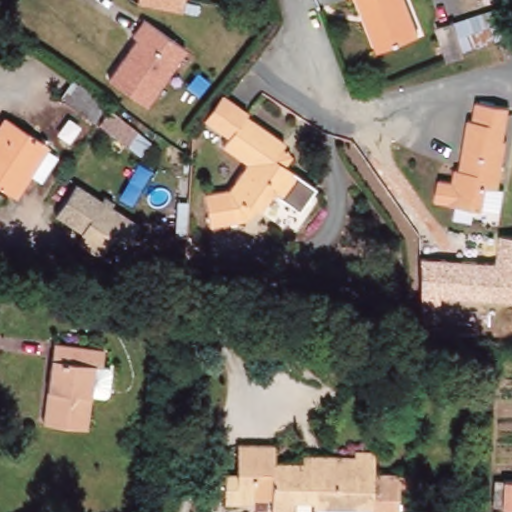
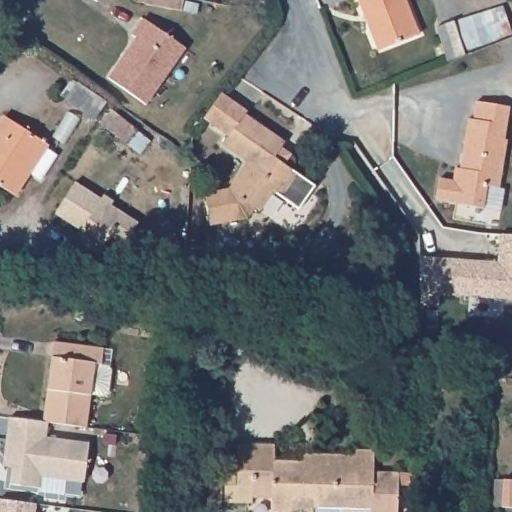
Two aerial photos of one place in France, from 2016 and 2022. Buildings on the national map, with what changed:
unchanged [(182,14),(139,5),(140,0),(185,0),(182,14)]
unchanged [(414,35),(374,50),(354,0),(401,0),(414,35)]
unchanged [(492,11),(497,25),(502,39),(466,51),(468,55),(450,62),(439,29),(457,23),(492,11)]
unchanged [(138,36),(133,33),(144,17),(186,47),(147,104),(110,77),(138,36)]
unchanged [(254,208),(253,209),(246,220),(208,224),(205,193),(226,191),(247,163),(222,145),(228,137),(203,119),(220,96),(221,95),(246,113),(244,116),(284,145),(274,159),(295,175),(314,189),(296,212),(283,203),(273,220),(258,211),(254,208)]
unchanged [(463,120),(468,120),(470,102),(504,107),(499,140),(502,140),(495,188),(482,186),(478,209),(446,205),(446,203),(431,200),(434,180),(447,182),(449,170),(455,171),(458,155),(463,120)]
unchanged [(47,147),(59,155),(44,178),(43,177),(31,170),(26,180),(16,194),(0,184),(0,124),(5,116),(48,146),(47,147)]
unchanged [(141,227),(114,267),(74,244),(81,234),(53,218),(75,183),(141,227)]
unchanged [(419,258),(497,262),(499,234),(512,235),(512,300),(439,295),(439,307),(417,306),(419,258)]
unchanged [(98,348),(96,364),(102,365),(106,370),(103,392),(100,395),(86,393),(82,427),(38,422),(38,421),(50,342),(98,348)]
new [(46,437),(89,443),(84,483),(41,478),(40,488),(9,484),(11,467),(2,466),(8,418),(38,421),(47,423),(46,437)]
unchanged [(272,512),(272,497),(252,496),(252,501),(224,500),(225,471),(237,471),(238,441),(275,443),(274,461),(303,462),(303,454),(315,454),(323,454),(354,455),(354,451),(374,451),(373,472),(398,473),(397,512),(370,512),(370,509),(333,508),(330,512),(321,512),(317,508),(313,508),(313,502),(293,501),(293,512),(272,512)]
unchanged [(505,478),(512,478),(512,506),(504,506),(505,478)]
new [(35,512),(0,512),(0,499),(36,504),(35,512)]

